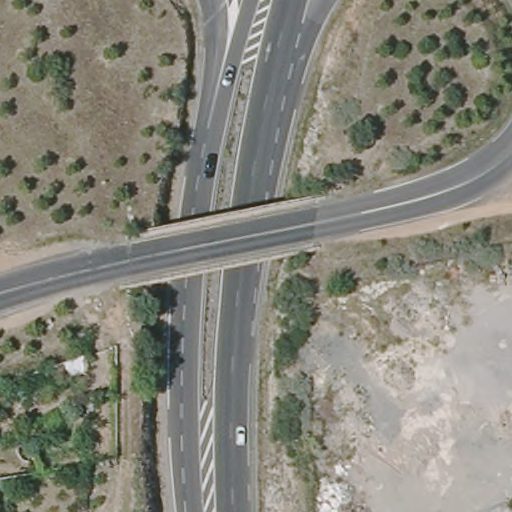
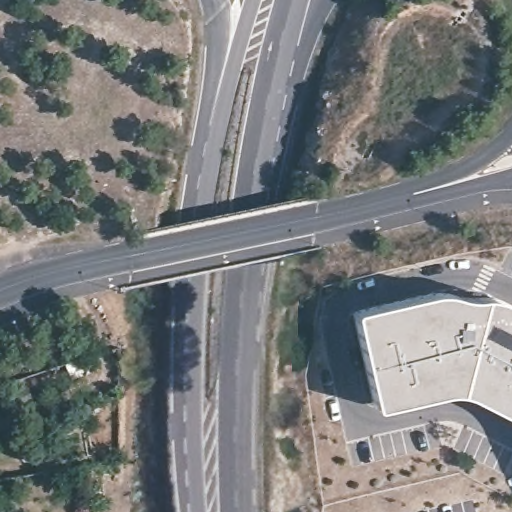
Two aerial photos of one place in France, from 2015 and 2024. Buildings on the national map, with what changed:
new [(431,292),(442,292),(453,296),(466,297),(472,297),(484,296),(493,298),(512,307),(512,419),(477,401),(457,392),(448,390),(372,407),(350,311),(431,292)]

